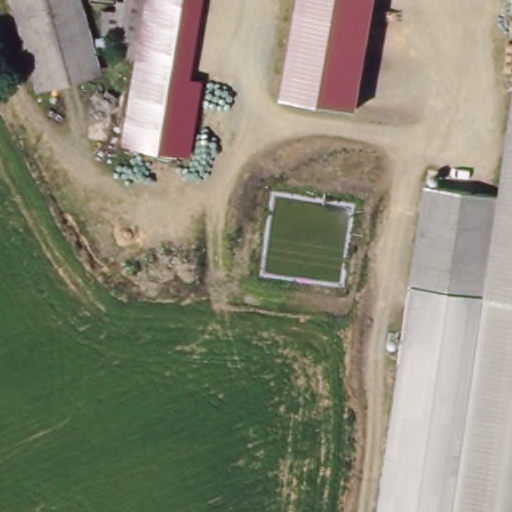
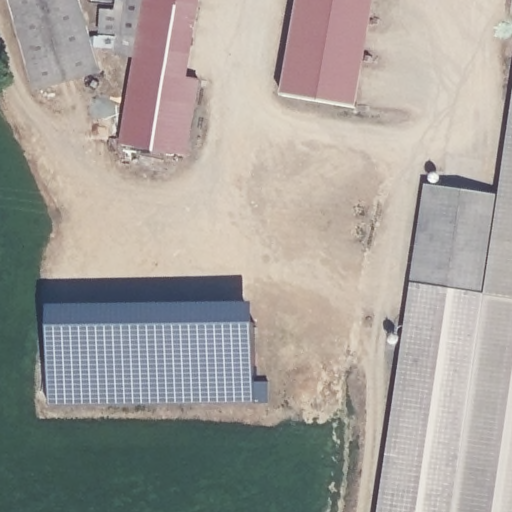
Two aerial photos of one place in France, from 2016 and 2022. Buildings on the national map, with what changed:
unchanged [(96,70),(37,87),(8,0),(75,0),(96,70)]
unchanged [(189,79),(199,81),(187,155),(118,144),(132,58),(115,55),(116,37),(98,35),(101,9),(114,10),(115,0),(121,0),(122,0),(200,0),(189,79)]
unchanged [(356,107),(281,95),(296,0),(374,0),(356,107)]
unchanged [(415,281),(431,181),(505,194),(512,148),(512,512),(456,512),(490,293),(415,281)]
unchanged [(456,512),(378,512),(410,282),(490,293),(456,512)]
new [(45,296),(251,297),(250,403),(44,402),(45,296)]

